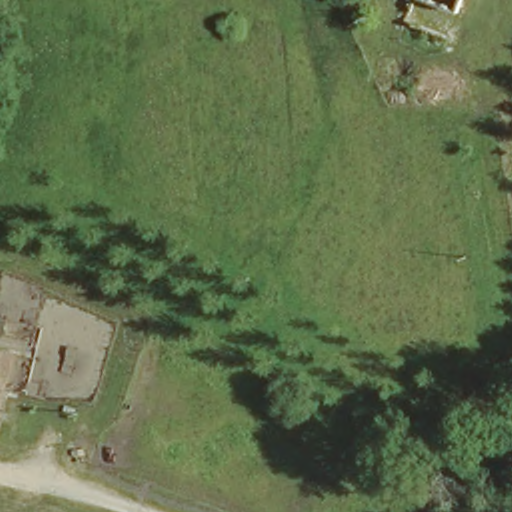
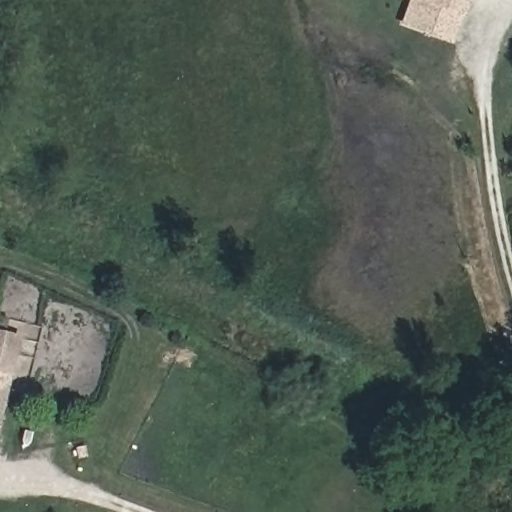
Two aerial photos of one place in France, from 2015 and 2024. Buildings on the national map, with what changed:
new [(408,0),(468,0),(462,18),(457,16),(450,45),(398,26),(408,0)]
unchanged [(9,249),(4,260),(0,257),(0,245),(9,249)]
unchanged [(76,277),(72,287),(55,279),(59,270),(76,277)]
unchanged [(14,348),(0,406),(0,344),(14,348)]

